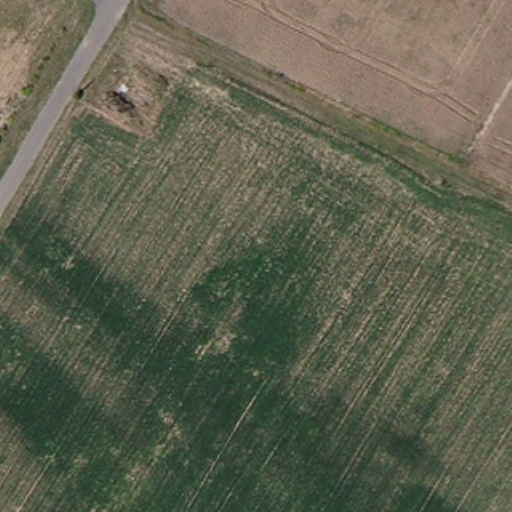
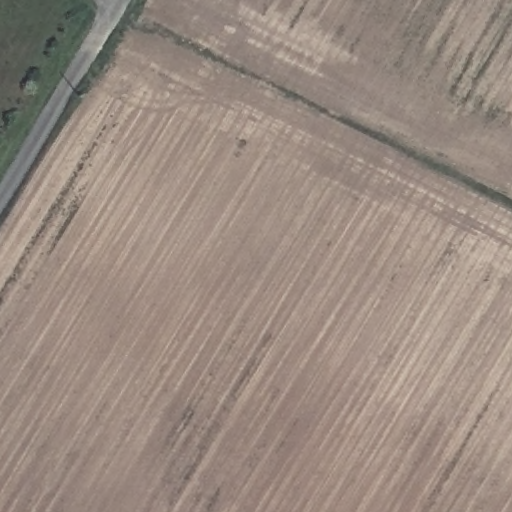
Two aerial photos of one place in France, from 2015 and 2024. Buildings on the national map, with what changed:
[]

